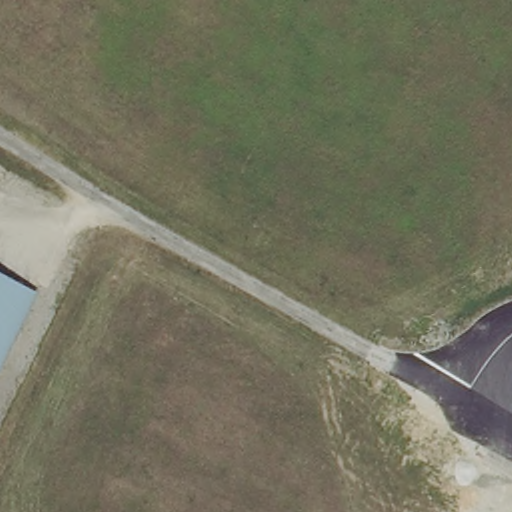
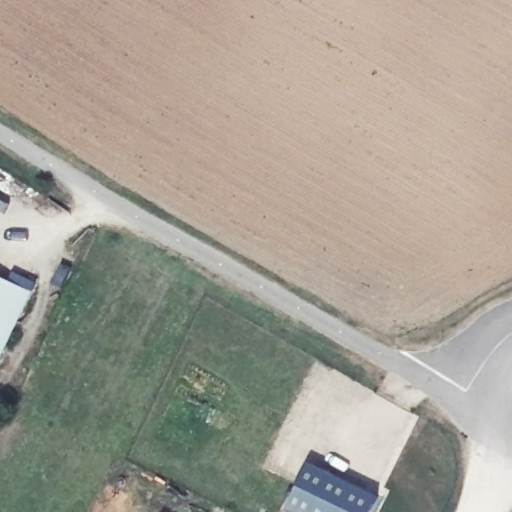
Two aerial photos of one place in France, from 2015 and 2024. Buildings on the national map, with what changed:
unchanged [(0,358),(0,283),(27,296),(0,358)]
new [(369,512),(290,512),(287,511),(310,462),(378,495),(369,512)]

